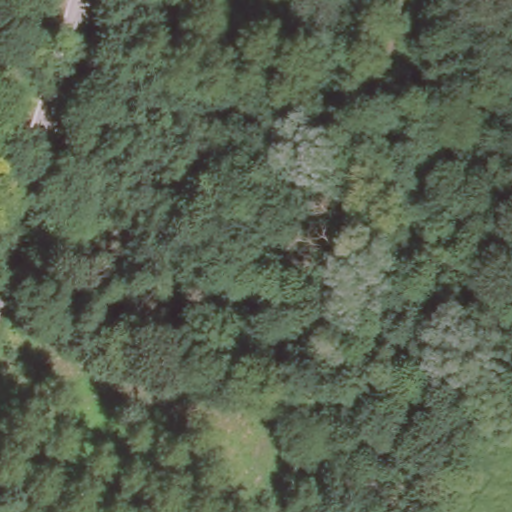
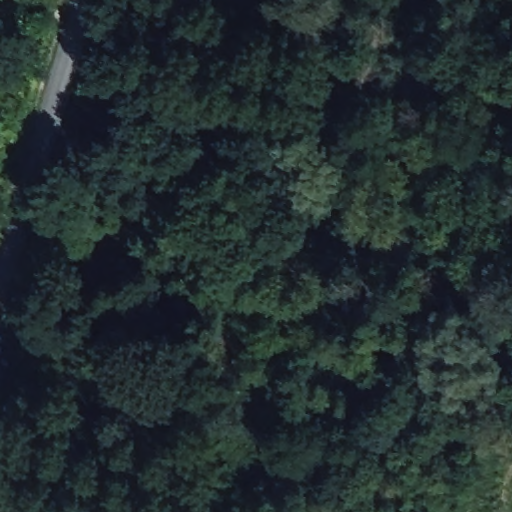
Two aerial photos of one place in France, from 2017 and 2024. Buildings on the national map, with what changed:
unchanged [(250,63),(240,49),(258,35),(265,52),(250,63)]

